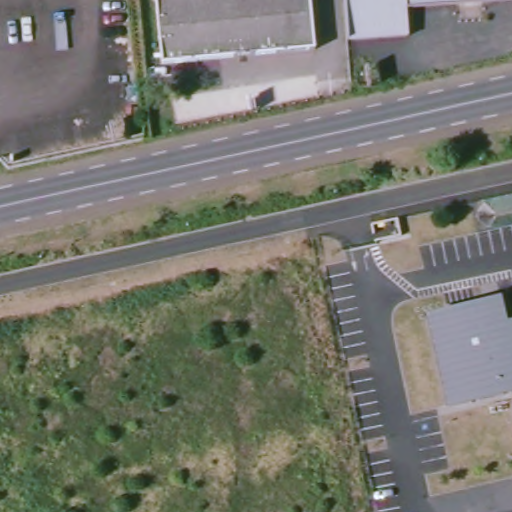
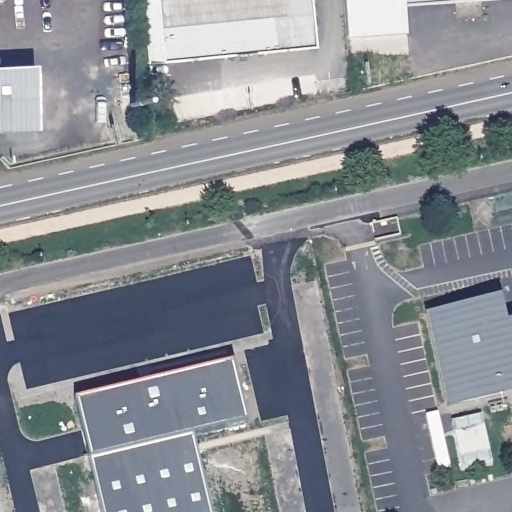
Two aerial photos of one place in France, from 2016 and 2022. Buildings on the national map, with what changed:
unchanged [(162,64),(155,0),(308,0),(313,48),(162,64)]
unchanged [(408,35),(347,40),(344,0),(505,0),(406,7),(408,35)]
new [(40,136),(0,138),(0,70),(37,67),(40,136)]
unchanged [(447,408),(427,312),(499,298),(505,323),(512,321),(512,403),(510,394),(447,408)]
new [(246,416),(192,430),(211,512),(107,512),(78,392),(233,357),(246,416)]

